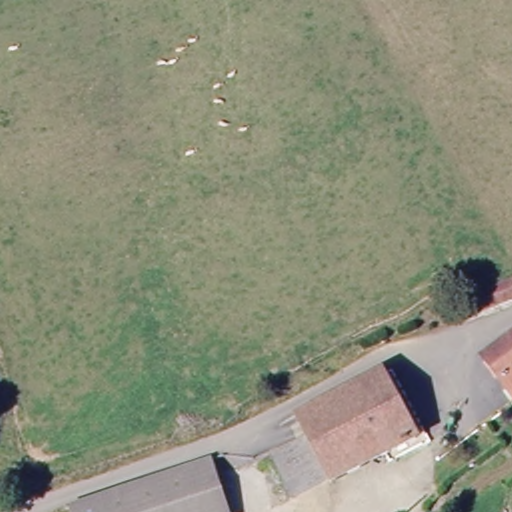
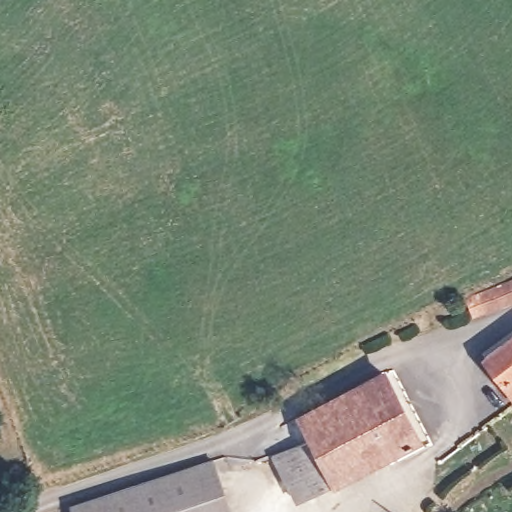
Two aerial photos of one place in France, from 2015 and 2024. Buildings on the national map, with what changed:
unchanged [(482,298),(512,288),(512,301),(487,309),(482,298)]
unchanged [(512,346),(512,392),(491,359),(512,346)]
unchanged [(311,441),(306,435),(296,416),(383,375),(387,382),(417,441),(334,486),(311,441)]
unchanged [(274,460),(311,441),(334,486),(298,506),(274,460)]
unchanged [(230,511),(229,512),(68,512),(208,460),(230,511)]
unchanged [(229,512),(230,511),(230,512),(229,512)]

